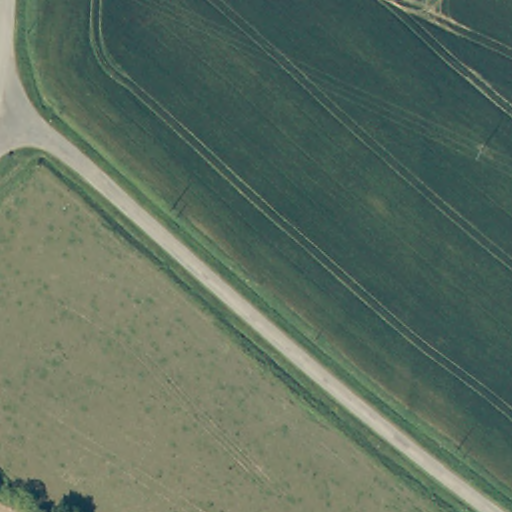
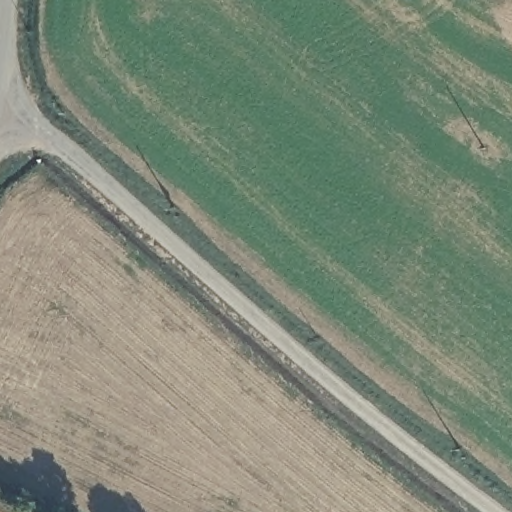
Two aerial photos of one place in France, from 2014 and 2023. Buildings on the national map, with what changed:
[]

